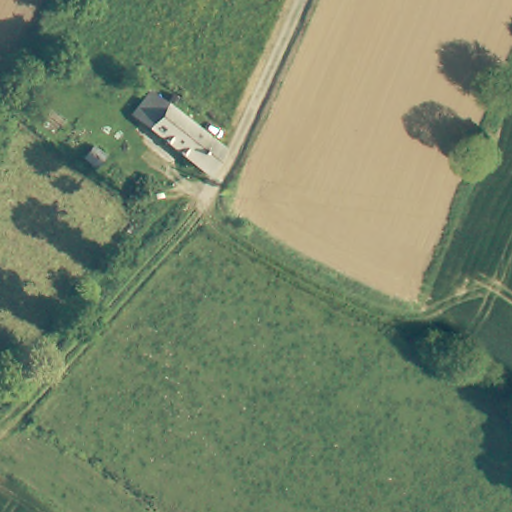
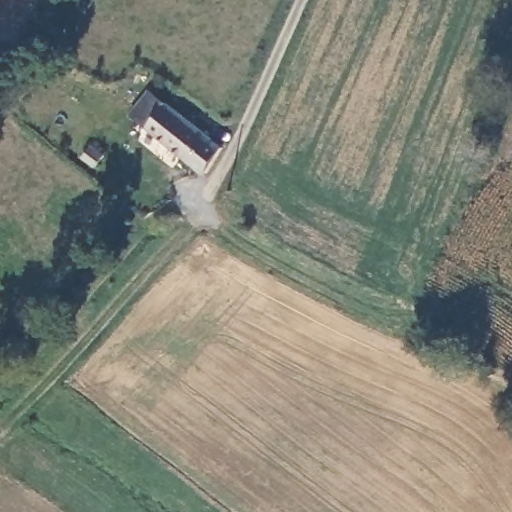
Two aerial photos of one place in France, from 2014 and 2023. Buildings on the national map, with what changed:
unchanged [(134,114),(141,102),(154,85),(227,141),(210,173),(134,114)]
unchanged [(97,153),(111,163),(102,175),(89,164),(97,153)]

